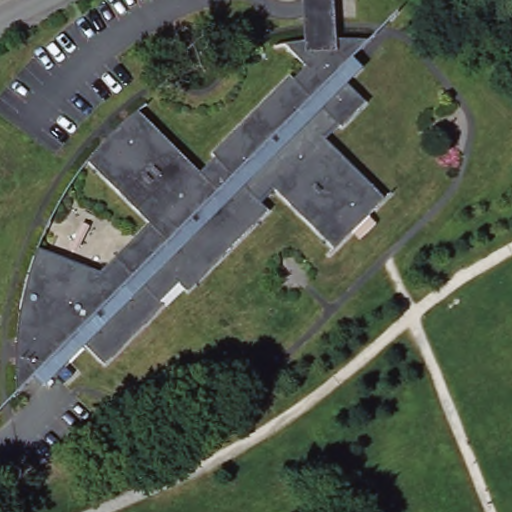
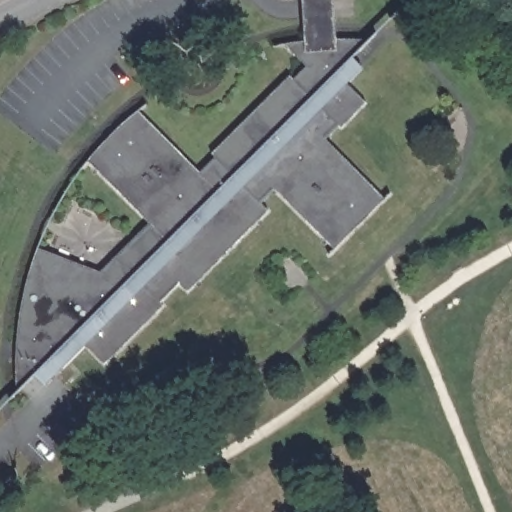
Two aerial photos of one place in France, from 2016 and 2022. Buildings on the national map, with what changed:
unchanged [(15,368),(15,338),(25,283),(39,245),(103,270),(153,221),(87,158),(103,138),(141,109),(200,172),(216,154),(211,150),(290,71),(296,75),(306,64),(281,41),(302,40),(302,0),(334,0),(339,36),(370,36),(354,56),(367,66),(351,84),(368,100),(331,135),(385,197),(335,248),(275,188),(263,202),(270,209),(109,362),(88,343),(48,384),(36,373),(18,387),(15,368)]

